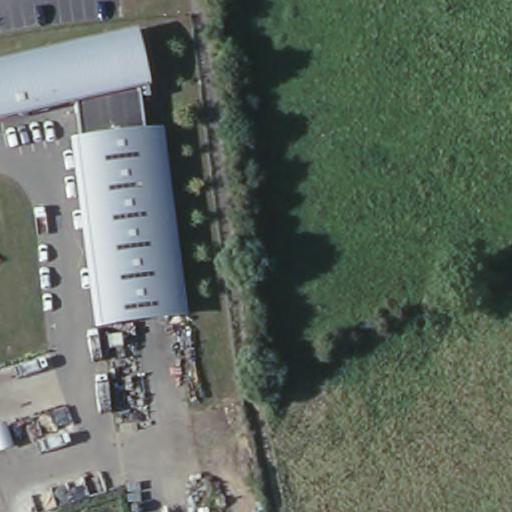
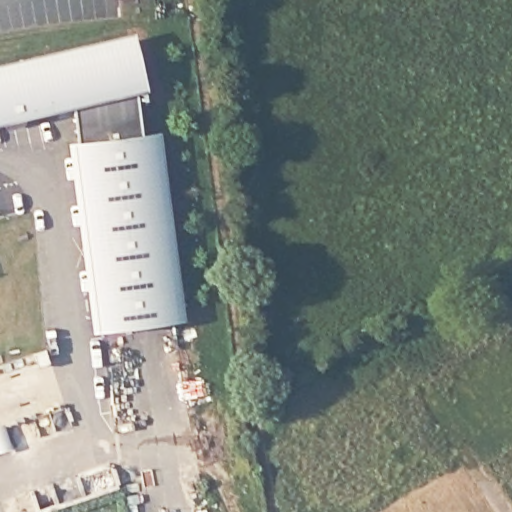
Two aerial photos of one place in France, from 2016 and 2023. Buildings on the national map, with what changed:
unchanged [(75,140),(70,100),(65,102),(63,95),(27,103),(27,105),(27,107),(25,109),(23,111),(21,112),(18,113),(15,112),(13,110),(11,109),(11,107),(0,110),(0,66),(128,36),(139,84),(134,85),(141,132),(152,131),(175,313),(97,323),(73,140),(75,140)]
unchanged [(0,438),(0,437),(0,426),(6,423),(10,435),(13,443),(3,447),(0,438)]

